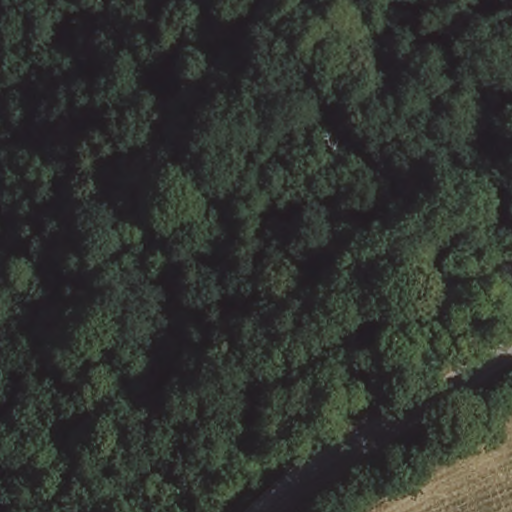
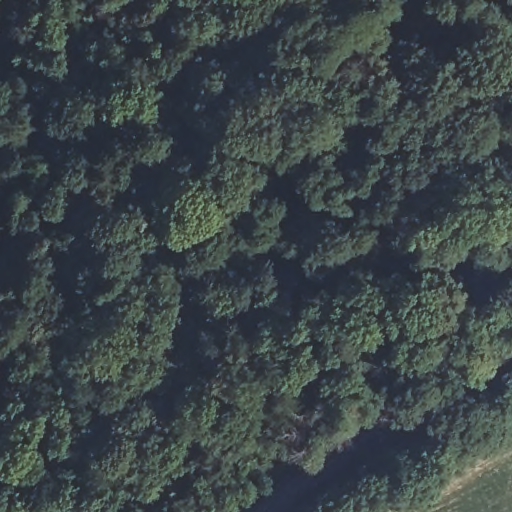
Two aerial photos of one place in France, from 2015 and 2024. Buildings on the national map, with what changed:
unchanged [(317,449),(286,475),(264,495),(246,512),(241,512),(243,509),(261,491),(283,472),(315,447),(316,447),(317,449)]

